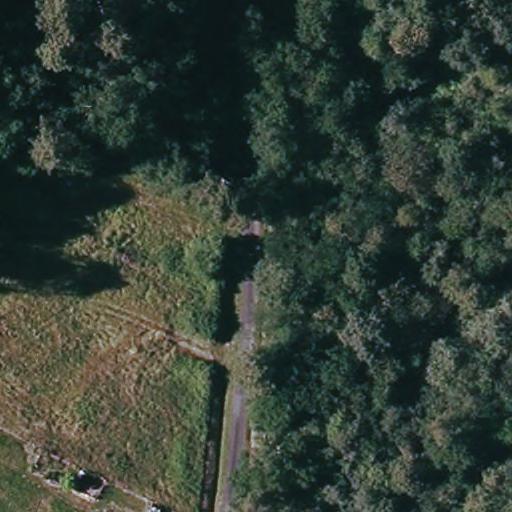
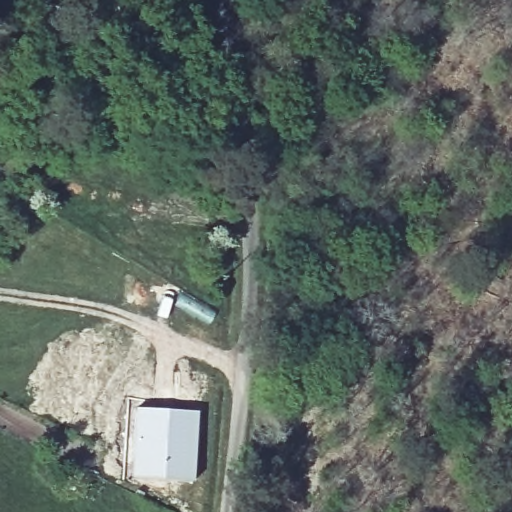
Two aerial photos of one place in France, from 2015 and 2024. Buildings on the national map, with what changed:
unchanged [(0,169),(0,142),(12,151),(0,169)]
new [(131,407),(198,411),(193,484),(124,479),(131,407)]

